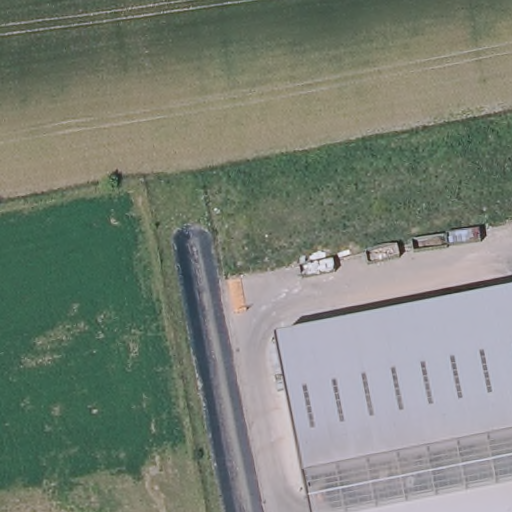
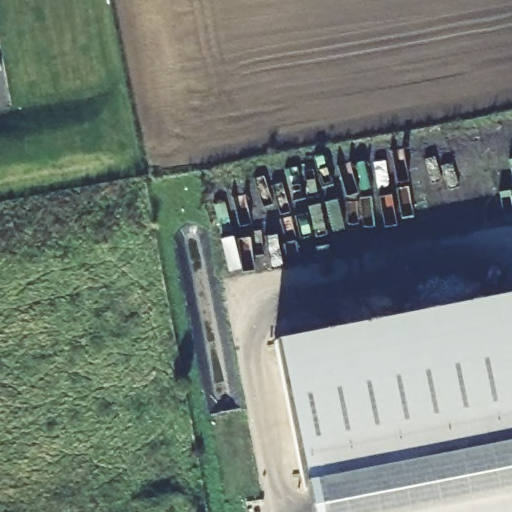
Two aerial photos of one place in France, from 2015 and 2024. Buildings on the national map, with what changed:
unchanged [(512,512),(308,512),(276,341),(512,295),(512,512)]

